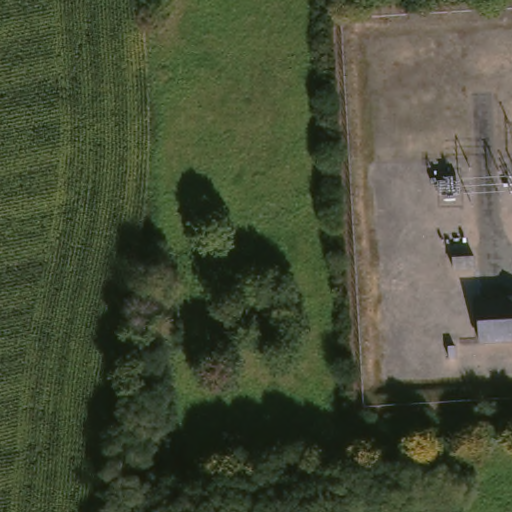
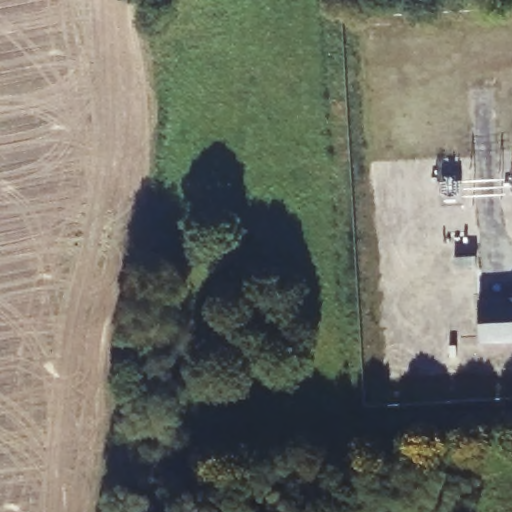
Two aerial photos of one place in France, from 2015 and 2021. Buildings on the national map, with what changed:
unchanged [(450,254),(471,253),(472,269),(451,269),(450,254)]
unchanged [(512,342),(481,344),(479,299),(512,298),(512,342)]

